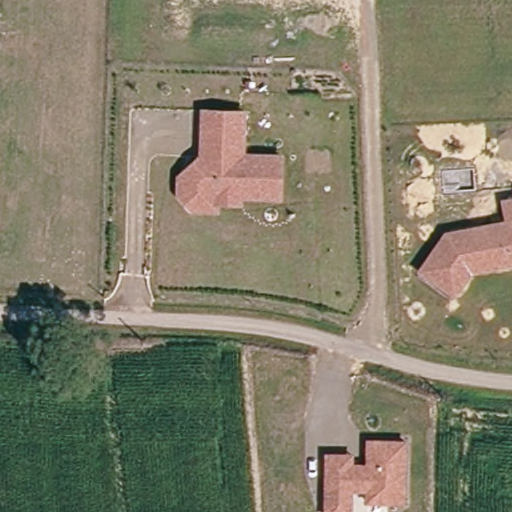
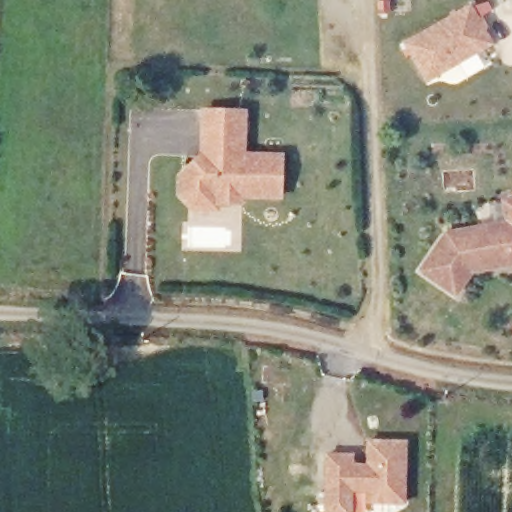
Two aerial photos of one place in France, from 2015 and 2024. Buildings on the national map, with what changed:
new [(402,43),(470,4),(492,46),(426,84),(402,43)]
unchanged [(215,202),(215,210),(190,209),(182,200),(182,193),(183,172),(199,156),(206,156),(206,148),(201,148),(202,110),(242,111),(241,155),(280,156),(279,197),(237,195),(237,203),(215,202)]
unchanged [(478,264),(474,264),(456,290),(423,267),(447,231),(482,224),(508,220),(503,196),(512,195),(512,258),(478,264)]
unchanged [(352,452),(353,462),(365,462),(365,437),(405,439),(404,503),(364,503),(364,491),(352,492),(352,512),(322,512),(322,451),(352,452)]

